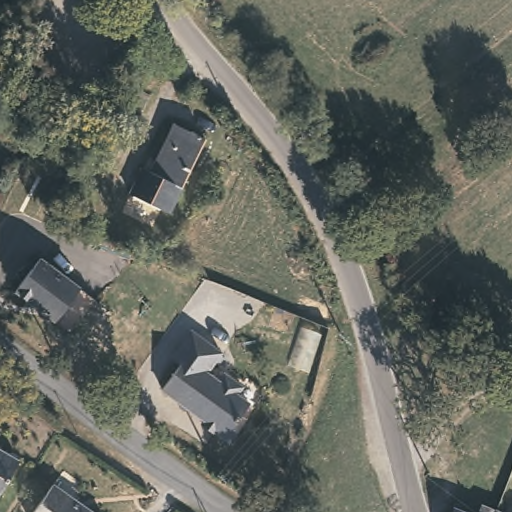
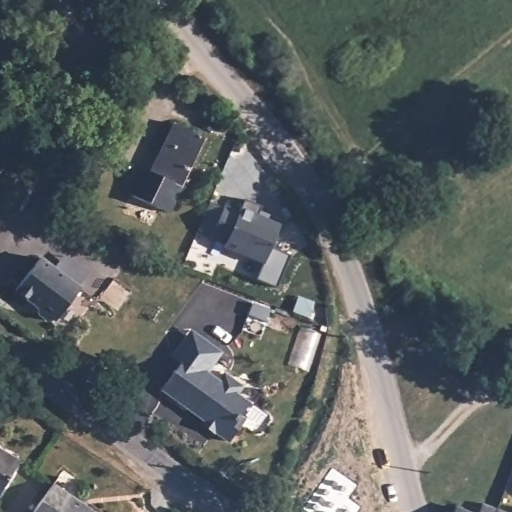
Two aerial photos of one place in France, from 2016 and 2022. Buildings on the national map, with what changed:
unchanged [(153,95),(140,122),(115,109),(128,82),(153,95)]
unchanged [(204,140),(160,213),(126,192),(140,167),(146,170),(174,123),(204,140)]
new [(225,207),(239,214),(245,201),(262,209),(258,218),(280,227),(264,266),(224,249),(226,246),(211,240),(225,207)]
unchanged [(30,250),(92,297),(67,330),(43,311),(37,312),(27,304),(26,298),(5,282),(30,250)]
unchanged [(209,369),(221,378),(227,370),(244,383),(238,391),(251,401),(242,413),(247,417),(231,439),(217,428),(216,429),(204,420),(206,417),(191,405),(189,408),(180,401),(182,399),(164,385),(183,360),(175,354),(194,327),(206,336),(224,349),(209,369)]
unchanged [(0,493),(0,447),(22,462),(0,493)]
unchanged [(88,512),(38,512),(55,488),(88,512)]
unchanged [(454,503),(477,512),(481,500),(496,506),(494,512),(451,512),(454,503)]
unchanged [(496,506),(512,511),(512,512),(494,512),(496,506)]

